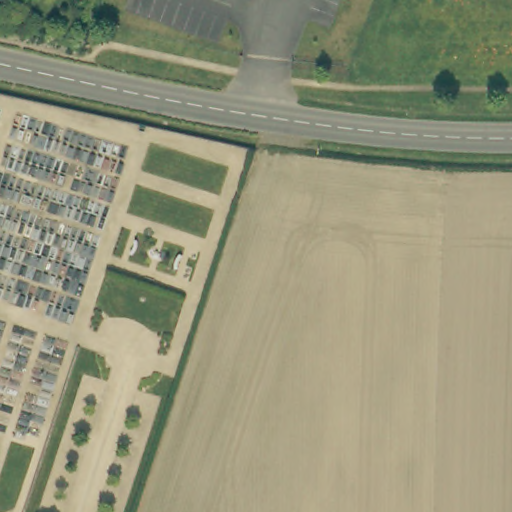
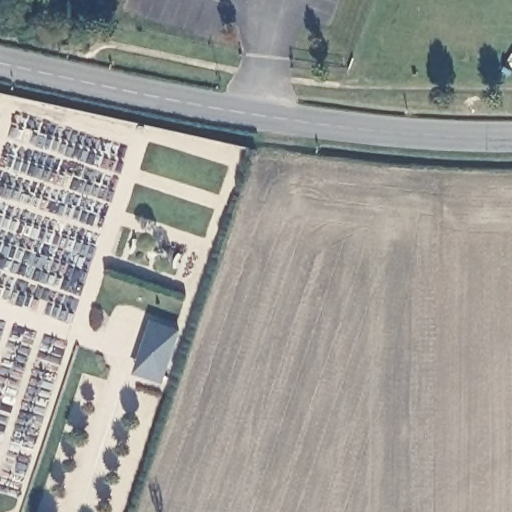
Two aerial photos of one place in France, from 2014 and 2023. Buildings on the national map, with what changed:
new [(153,321),(179,329),(163,380),(136,371),(153,321)]
unchanged [(24,512),(3,512),(6,505),(24,512)]

